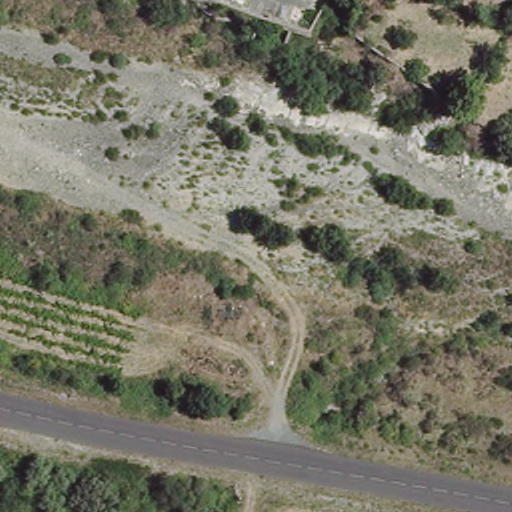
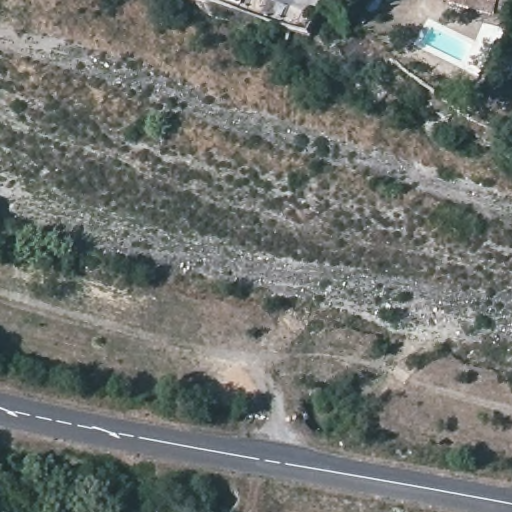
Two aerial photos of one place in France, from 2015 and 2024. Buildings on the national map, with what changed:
unchanged [(444,2),(444,0),(497,0),(494,15),(444,2)]

